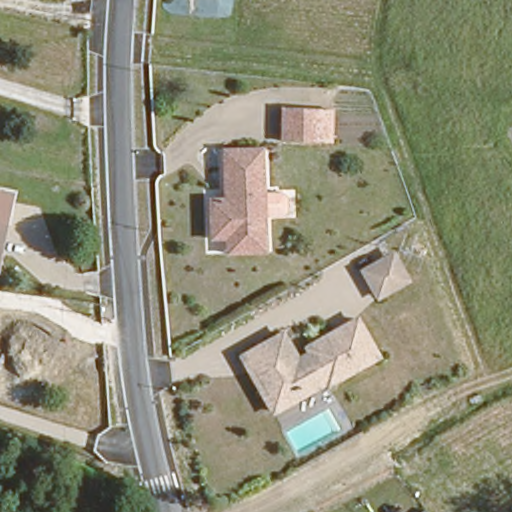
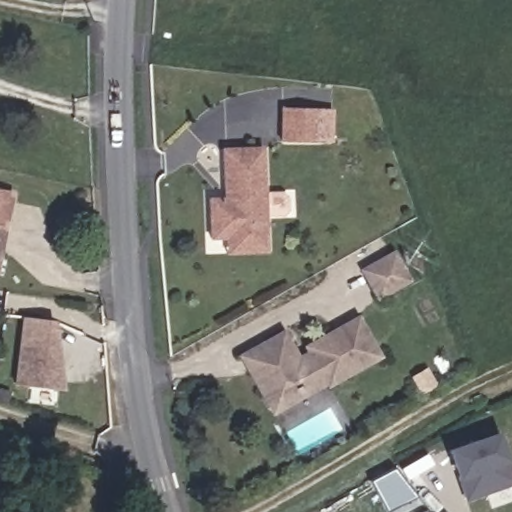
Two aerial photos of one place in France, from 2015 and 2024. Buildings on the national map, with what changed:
unchanged [(282,142),(279,107),(313,104),(317,138),(282,142)]
unchanged [(216,257),(216,242),(200,242),(200,200),(221,200),(221,191),(216,190),(216,150),(257,149),(256,192),(288,192),(288,214),(257,214),(256,242),(256,257),(216,257)]
unchanged [(11,192),(3,222),(0,235),(0,189),(11,192)]
unchanged [(381,300),(360,269),(393,250),(411,282),(381,300)]
unchanged [(275,413),(236,355),(281,328),(298,354),(303,352),(300,345),(356,315),(379,353),(275,413)]
new [(22,317),(54,322),(61,389),(13,383),(22,317)]
new [(512,486),(466,502),(463,496),(461,497),(446,450),(498,431),(512,470),(512,486)]

